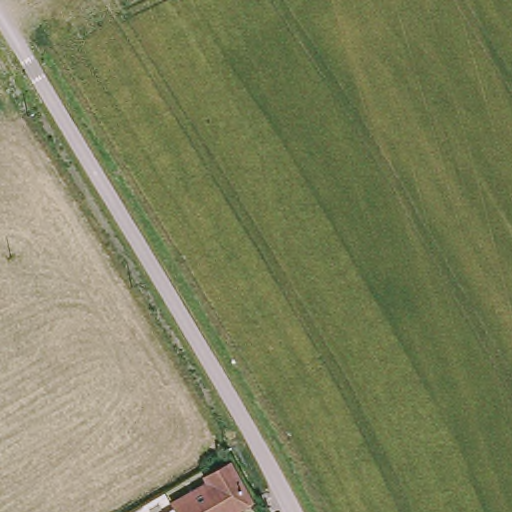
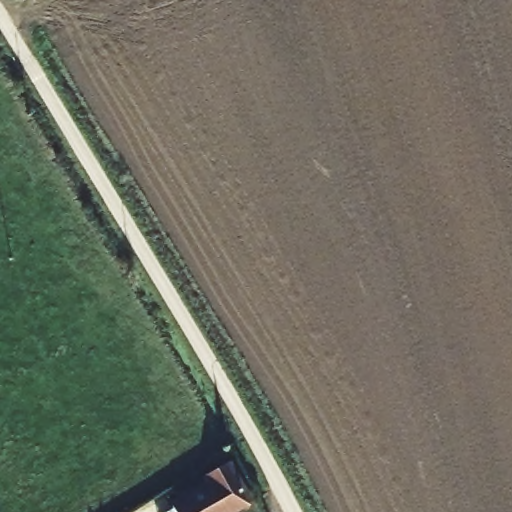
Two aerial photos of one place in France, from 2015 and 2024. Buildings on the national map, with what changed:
unchanged [(252,507),(243,512),(180,512),(178,507),(216,486),(212,476),(232,467),(252,507)]

